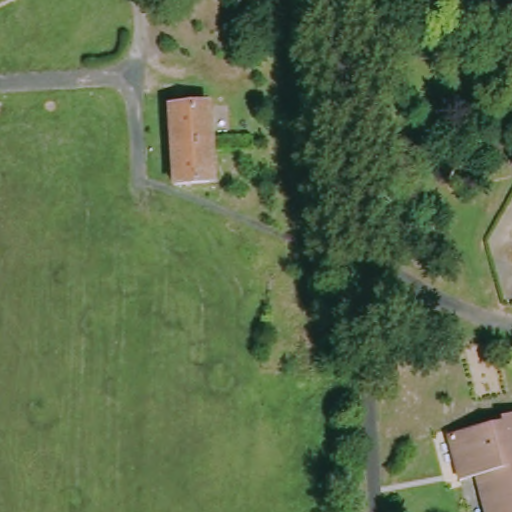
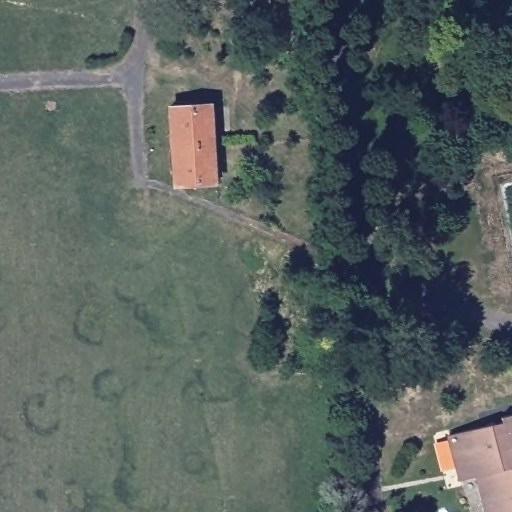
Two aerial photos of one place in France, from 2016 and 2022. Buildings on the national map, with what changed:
unchanged [(174,145),(172,108),(206,104),(209,142),(174,145)]
unchanged [(212,180),(176,184),(174,145),(209,142),(212,180)]
unchanged [(472,478),(460,483),(449,433),(512,417),(512,512),(482,512),(472,478)]

